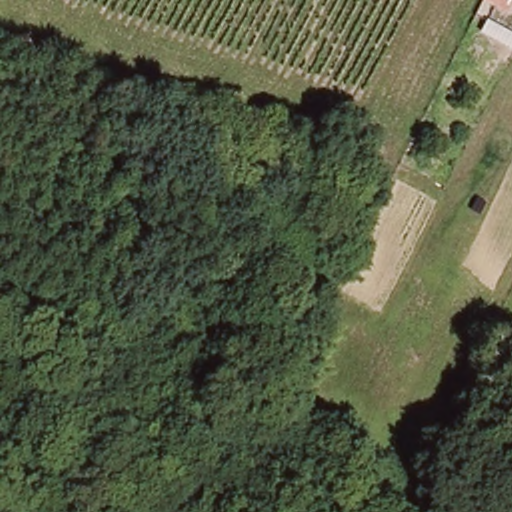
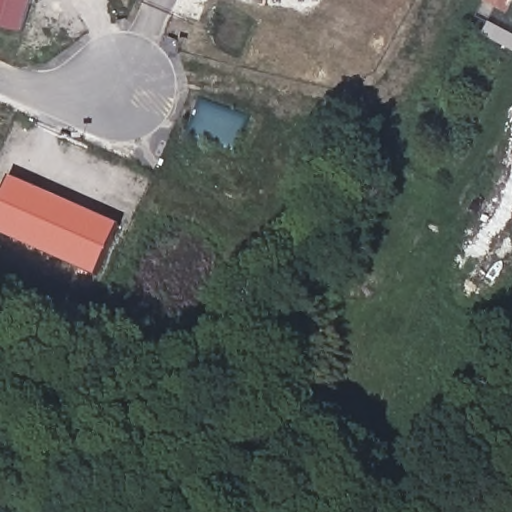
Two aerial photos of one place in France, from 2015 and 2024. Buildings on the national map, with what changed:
new [(0,19),(0,0),(33,0),(26,25),(0,19)]
new [(94,276),(0,233),(0,199),(10,179),(115,228),(94,276)]

